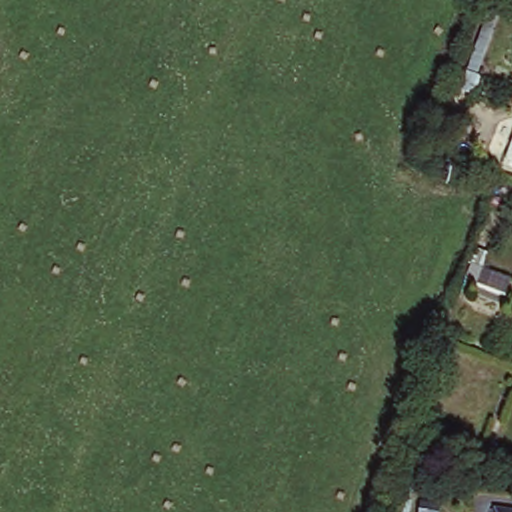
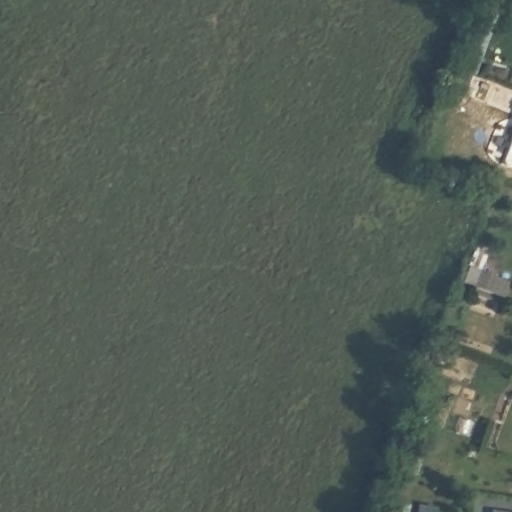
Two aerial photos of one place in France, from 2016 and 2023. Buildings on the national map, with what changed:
unchanged [(504,152),(512,131),(512,166),(511,166),(504,152)]
unchanged [(497,283),(512,289),(512,309),(490,301),(497,283)]
unchanged [(489,510),(501,512),(489,512),(489,510)]

